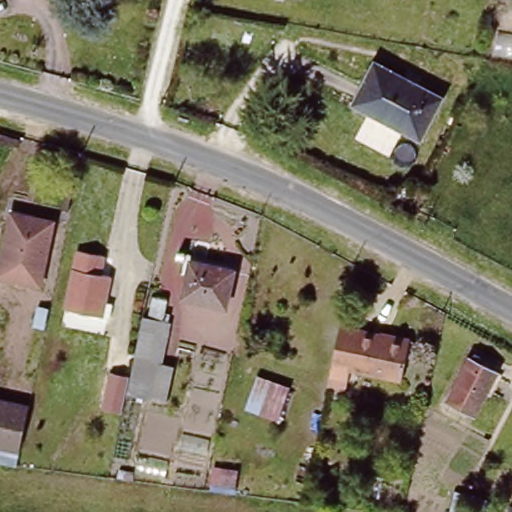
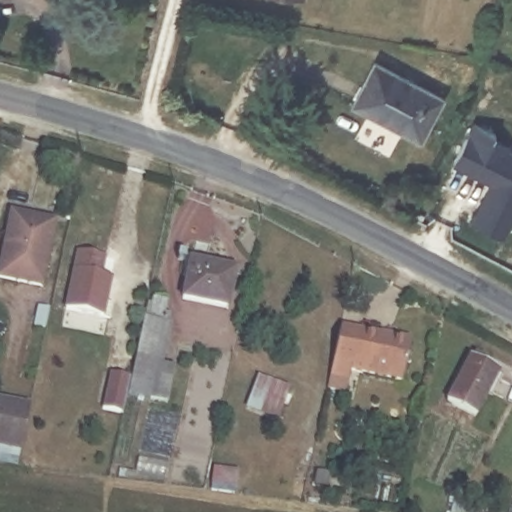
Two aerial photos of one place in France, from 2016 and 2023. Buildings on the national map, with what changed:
unchanged [(440,97),(419,142),(350,105),(372,64),(440,97)]
new [(490,188),(474,180),(452,170),(472,130),(495,141),(492,146),(509,155),(507,159),(512,161),(512,226),(505,240),(472,224),(492,185),(490,188)]
unchanged [(28,230),(30,220),(50,223),(39,286),(19,283),(0,279),(0,270),(7,226),(28,230)]
unchanged [(109,318),(102,317),(67,310),(77,253),(103,257),(100,275),(110,276),(105,305),(111,306),(109,318)]
unchanged [(233,265),(228,297),(185,290),(190,257),(233,265)]
unchanged [(147,298),(167,302),(165,318),(170,320),(164,361),(174,364),(165,404),(127,397),(147,298)]
unchanged [(410,336),(404,376),(352,367),(349,391),(327,387),(340,323),(410,336)]
unchanged [(494,372),(472,417),(446,403),(467,358),(494,372)]
unchanged [(122,375),(122,378),(117,410),(98,406),(103,371),(122,375)]
unchanged [(26,405),(20,448),(0,445),(0,399),(26,405)]

